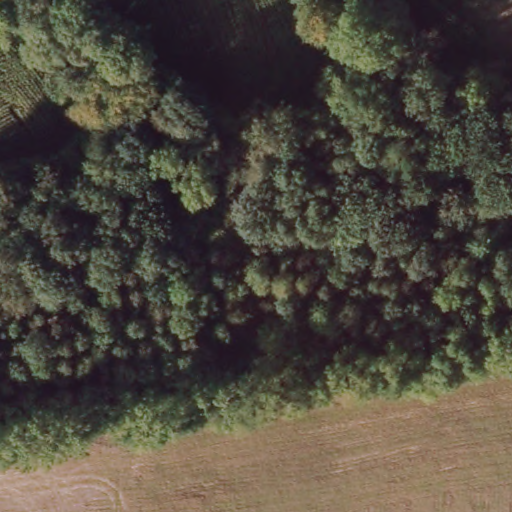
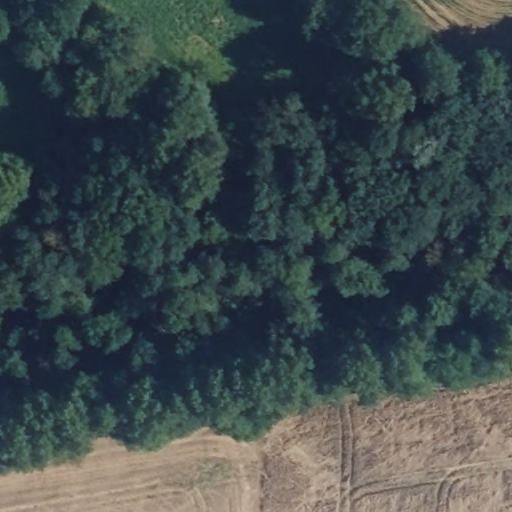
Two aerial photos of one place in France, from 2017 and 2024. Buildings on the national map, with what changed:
unchanged [(92,412),(63,415),(60,386),(88,384),(92,412)]

